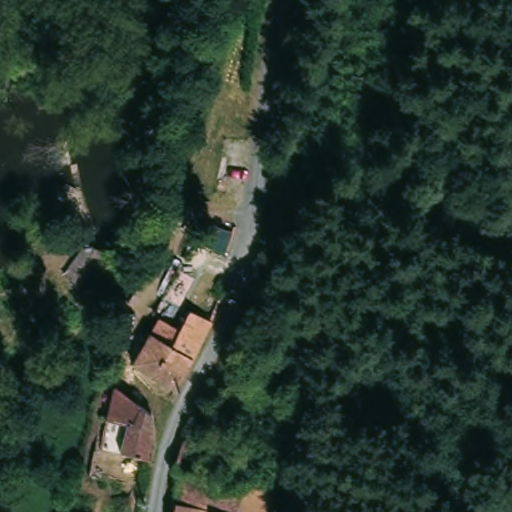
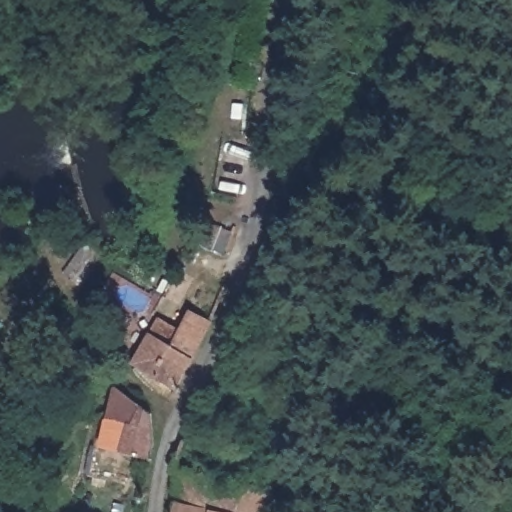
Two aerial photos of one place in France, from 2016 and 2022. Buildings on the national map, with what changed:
unchanged [(224,301),(213,328),(200,354),(175,402),(131,376),(152,340),(144,335),(152,319),(177,340),(189,320),(163,300),(197,240),(234,273),(224,301)]
unchanged [(129,396),(131,392),(159,413),(158,463),(126,455),(133,423),(103,413),(116,387),(129,396)]
unchanged [(214,444),(206,478),(212,479),(219,480),(219,481),(217,492),(242,499),(244,484),(251,486),(260,489),(262,483),(264,483),(279,487),(280,488),(275,512),(269,512),(264,510),(263,512),(176,512),(183,478),(174,476),(186,439),(214,444)]

